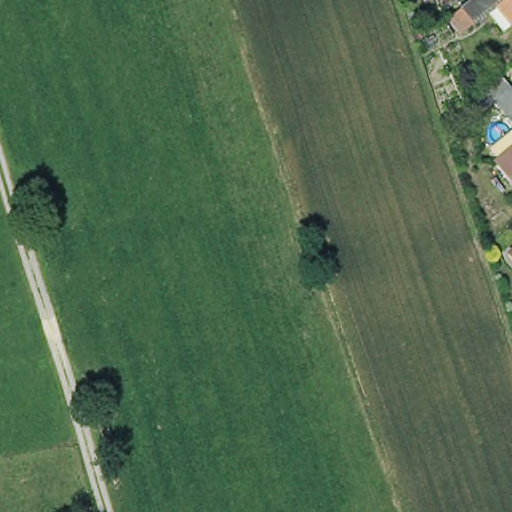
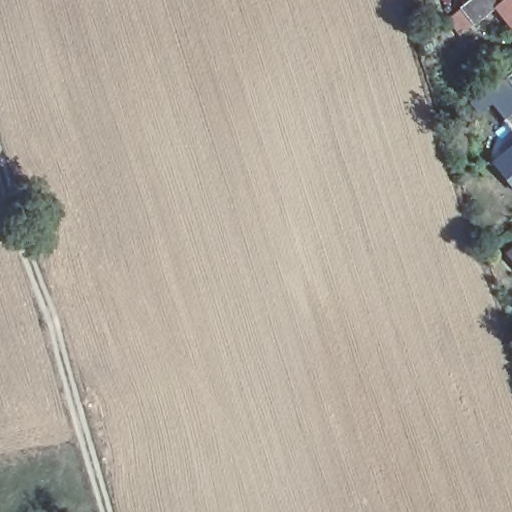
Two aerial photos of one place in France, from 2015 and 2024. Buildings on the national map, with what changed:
unchanged [(465,8),(465,6),(473,0),(512,0),(512,17),(502,5),(480,24),(478,22),(465,34),(452,20),(465,8)]
unchanged [(457,38),(441,49),(433,36),(449,25),(457,38)]
unchanged [(512,95),(512,119),(500,105),(512,95)]
unchanged [(512,156),(512,185),(498,168),(512,156)]

